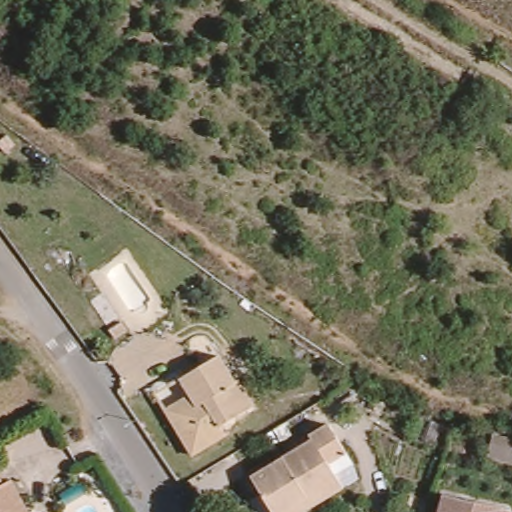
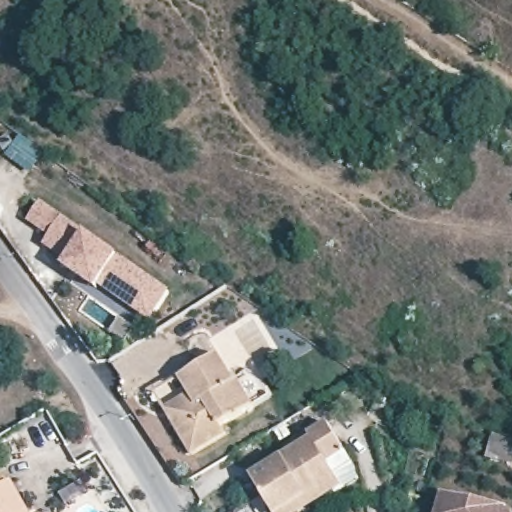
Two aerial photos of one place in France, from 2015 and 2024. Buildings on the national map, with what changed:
new [(101,286),(98,290),(66,266),(70,262),(45,245),(50,236),(30,222),(41,203),(167,293),(150,320),(101,286)]
unchanged [(216,362),(233,390),(238,387),(254,413),(220,433),(225,441),(192,460),(165,416),(190,400),(180,384),(216,362)]
unchanged [(319,439),(315,432),(335,421),(359,463),(345,473),(352,488),(333,500),(315,512),(281,512),(258,475),(319,439)]
unchanged [(5,485),(16,505),(21,512),(0,512),(0,487),(5,485)]
unchanged [(508,510),(510,512),(436,512),(440,493),(508,510)]

